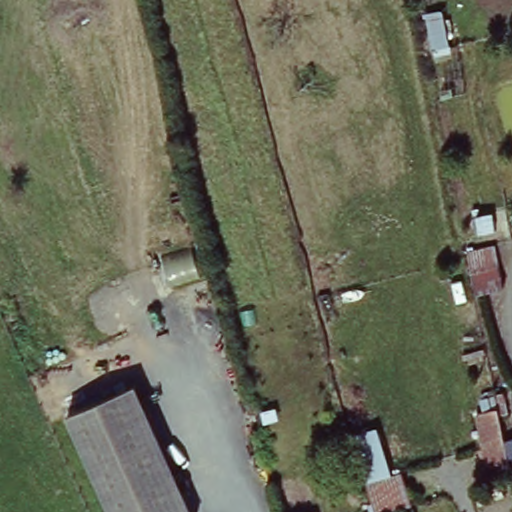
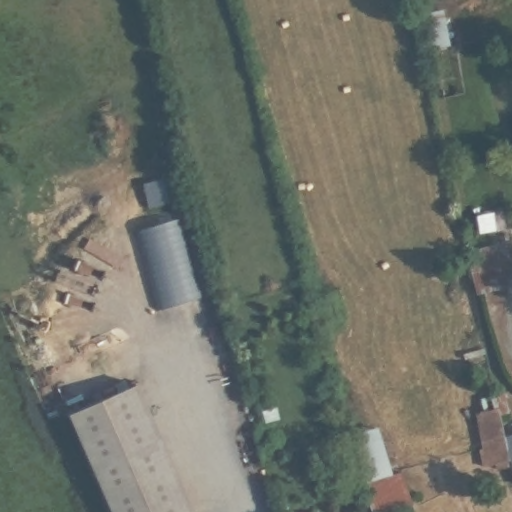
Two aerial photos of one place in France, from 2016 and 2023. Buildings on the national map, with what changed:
new [(183,220),(203,297),(159,310),(138,235),(183,220)]
unchanged [(504,288),(474,297),(465,257),(492,249),(504,288)]
unchanged [(140,385),(196,512),(114,512),(72,415),(140,385)]
unchanged [(500,473),(499,463),(489,467),(475,421),(484,419),(483,410),(493,406),(503,442),(511,469),(500,473)]
unchanged [(377,425),(391,472),(398,471),(408,508),(396,512),(373,512),(352,432),(377,425)]
unchanged [(320,512),(301,512),(317,507),(320,512)]

